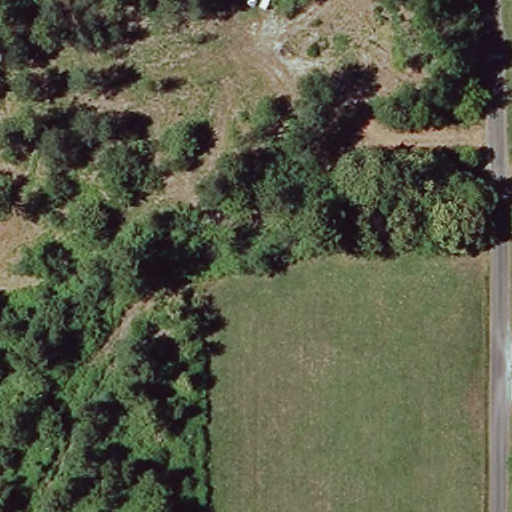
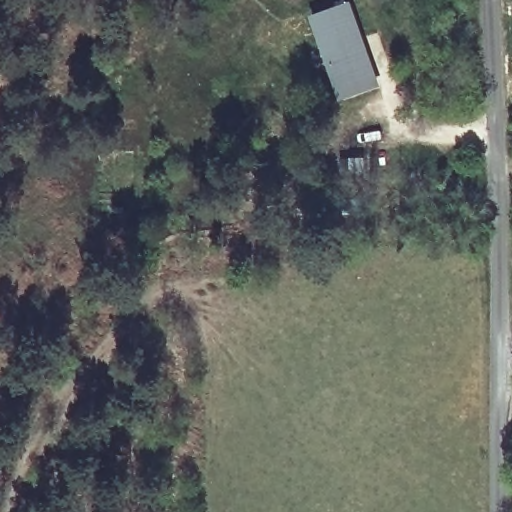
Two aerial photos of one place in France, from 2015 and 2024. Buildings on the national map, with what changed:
new [(380,84),(339,99),(310,15),(350,0),(380,84)]

